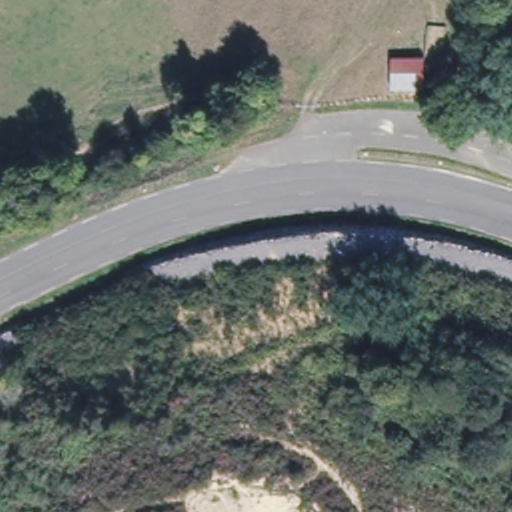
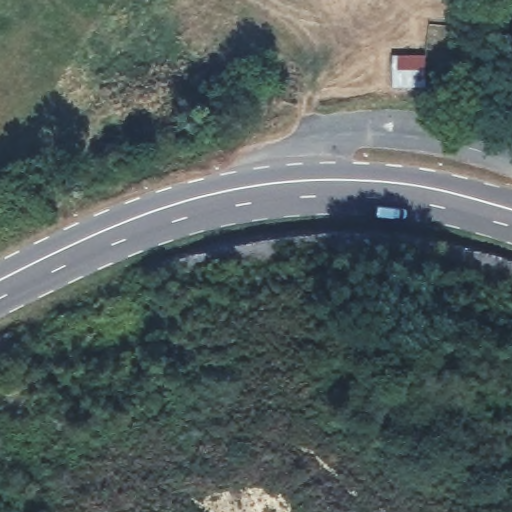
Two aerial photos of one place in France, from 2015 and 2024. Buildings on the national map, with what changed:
unchanged [(423,50),(425,84),(389,83),(391,52),(423,50)]

